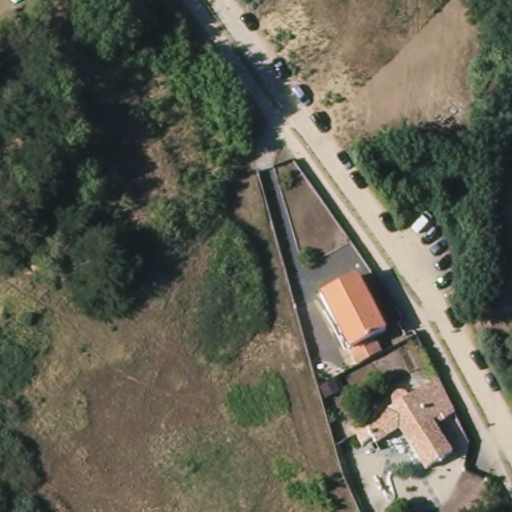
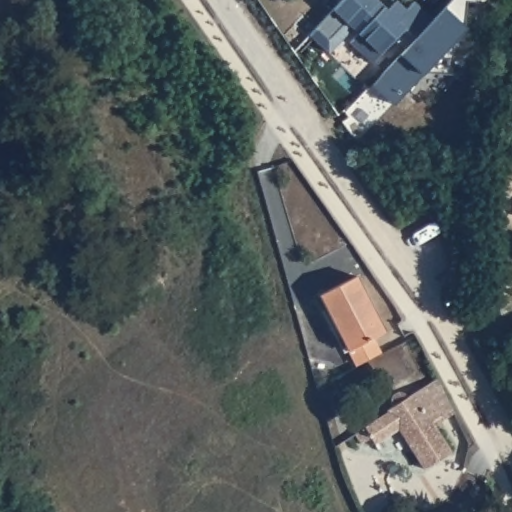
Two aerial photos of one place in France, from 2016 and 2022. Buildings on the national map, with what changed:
new [(376,0),(387,10),(394,1),(405,11),(414,1),(433,20),(406,49),(394,38),(372,62),(350,41),(359,32),(353,26),(329,52),(309,34),(341,0),(376,0)]
new [(433,20),(451,0),(488,0),(488,3),(467,1),(465,26),(454,37),(452,74),(422,73),(392,104),(371,85),(406,49),(433,20)]
unchanged [(385,332),(373,338),(380,351),(354,364),(348,350),(321,296),(357,278),(385,332)]
unchanged [(434,426),(452,454),(426,470),(400,429),(375,445),(372,439),(363,445),(357,434),(391,412),(389,410),(394,406),(393,402),(393,398),(396,395),(400,393),(404,395),(407,398),(437,379),(454,415),(444,422),(434,426)]
unchanged [(339,392),(327,400),(321,391),(335,383),(339,392)]

